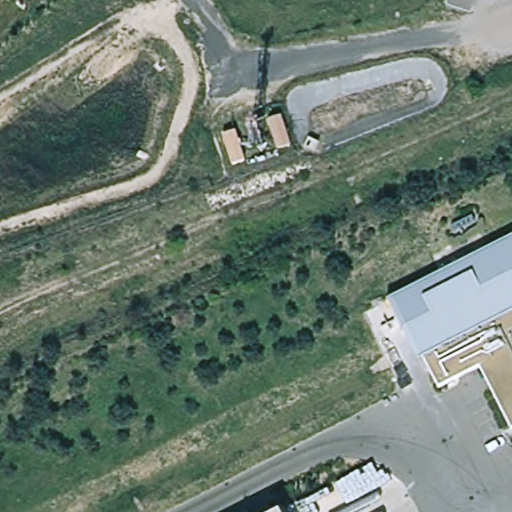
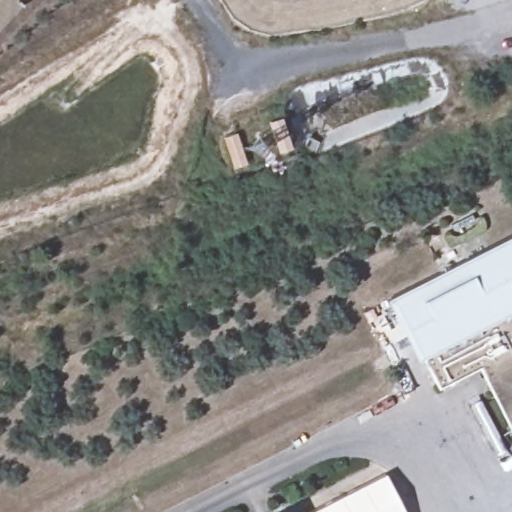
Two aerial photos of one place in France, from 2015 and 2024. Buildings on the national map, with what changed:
unchanged [(439,391),(425,365),(422,366),(388,303),(512,238),(512,424),(484,375),(439,391)]
new [(404,512),(312,512),(384,475),(404,512)]

